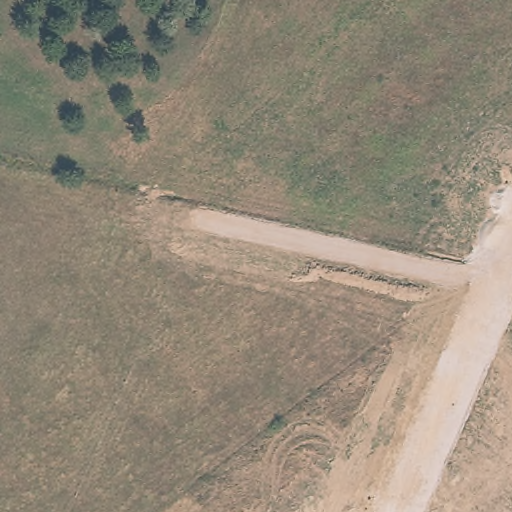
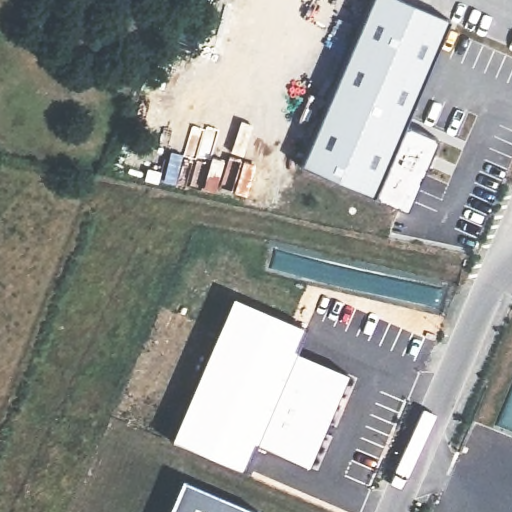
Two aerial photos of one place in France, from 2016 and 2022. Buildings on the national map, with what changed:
new [(371,0),(403,0),(449,19),(403,125),(437,139),(406,211),(299,166),(371,0)]
new [(233,297),(307,327),(297,352),(348,373),(307,466),(256,445),(244,473),(168,442),(233,297)]
new [(261,507),(258,512),(167,512),(184,473),(261,507)]

